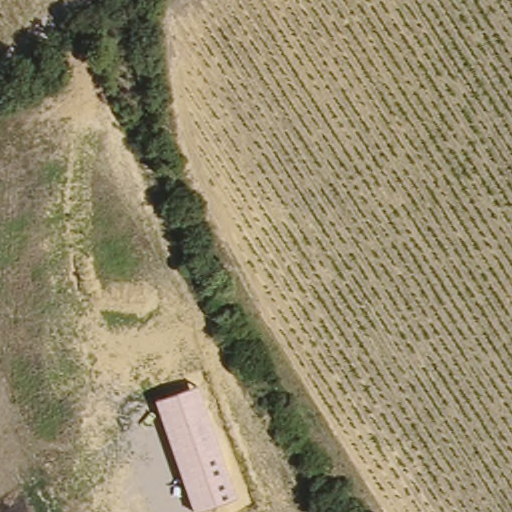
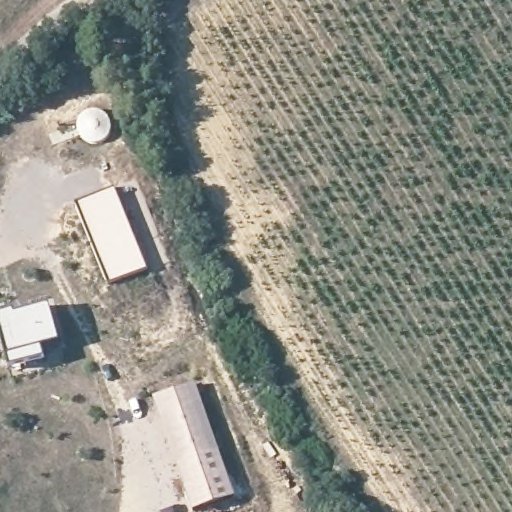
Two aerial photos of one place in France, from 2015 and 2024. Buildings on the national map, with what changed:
new [(115,191),(137,181),(170,261),(148,272),(110,289),(75,206),(115,191)]
new [(41,346),(44,359),(8,369),(0,337),(0,314),(13,310),(15,315),(49,305),(58,343),(41,346)]
unchanged [(155,399),(197,385),(235,495),(194,510),(155,399)]

